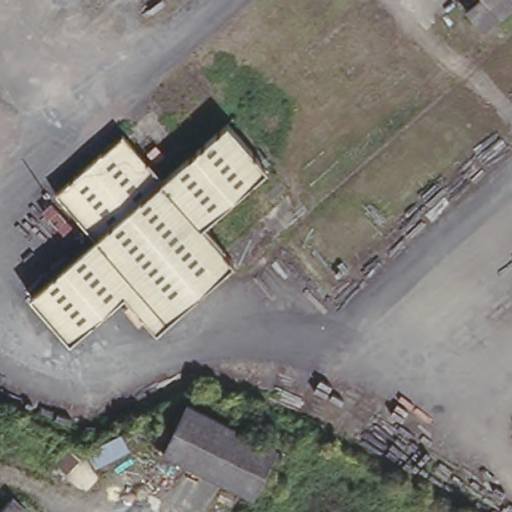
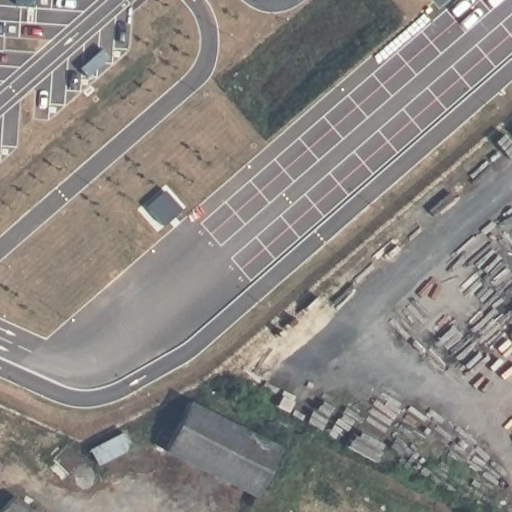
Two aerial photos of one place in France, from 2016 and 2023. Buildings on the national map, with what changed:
new [(432,0),(474,0),(450,20),(432,0)]
demolished [(490,5),(479,15),(465,0),(507,0),(494,10),(490,5)]
demolished [(231,257),(157,320),(126,287),(72,333),(28,292),(98,231),(55,190),(126,129),(167,171),(229,118),(270,162),(203,222),(231,257)]
unchanged [(189,399),(276,443),(254,490),(166,447),(189,399)]
unchanged [(30,504),(22,512),(0,512),(0,506),(15,490),(30,504)]

